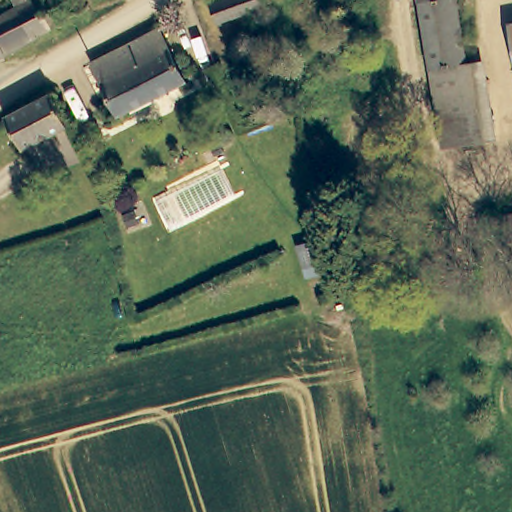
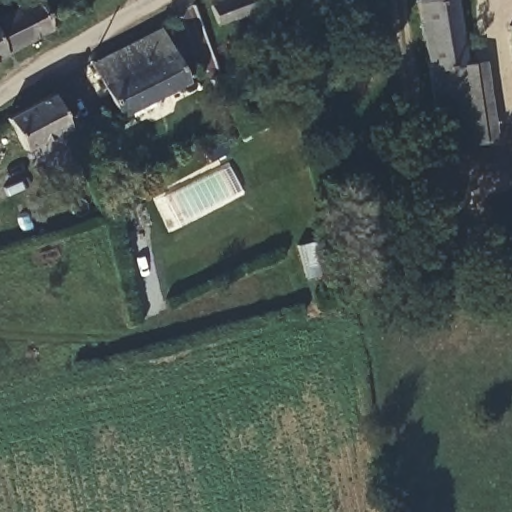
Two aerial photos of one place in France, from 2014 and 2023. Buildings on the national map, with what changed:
unchanged [(20,9),(15,0),(39,0),(52,32),(29,45),(13,12),(20,9)]
unchanged [(211,3),(221,0),(265,0),(267,6),(241,14),(219,22),(211,3)]
unchanged [(462,68),(429,74),(416,0),(450,0),(462,68)]
unchanged [(12,55),(0,61),(0,18),(13,12),(29,45),(12,55)]
unchanged [(510,23),(512,23),(512,32),(510,23)]
unchanged [(126,45),(161,26),(187,79),(151,99),(126,45)]
unchanged [(120,116),(93,62),(126,45),(151,99),(120,116)]
unchanged [(471,67),(483,140),(475,142),(442,147),(429,74),(462,68),(471,67)]
unchanged [(65,123),(20,149),(5,120),(50,93),(65,123)]

